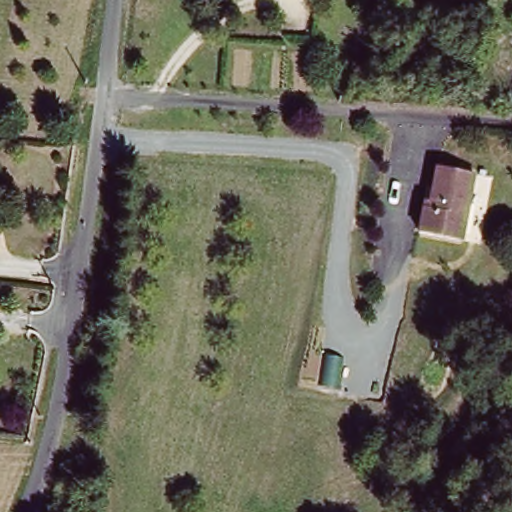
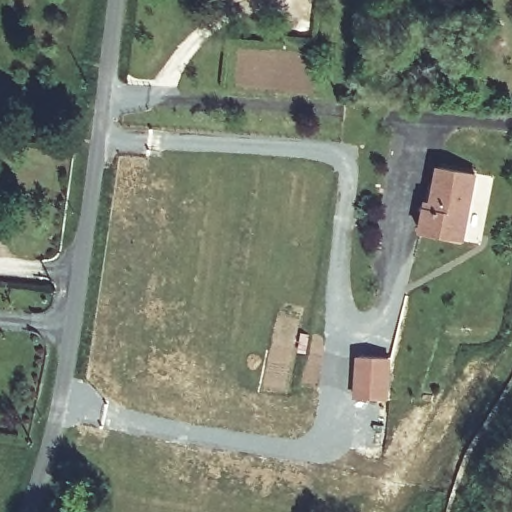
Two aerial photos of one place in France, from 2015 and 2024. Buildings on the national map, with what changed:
unchanged [(445,165),(479,171),(467,235),(426,228),(430,203),(432,196),(438,197),(445,165)]
new [(353,397),(356,356),(390,358),(388,399),(353,397)]

